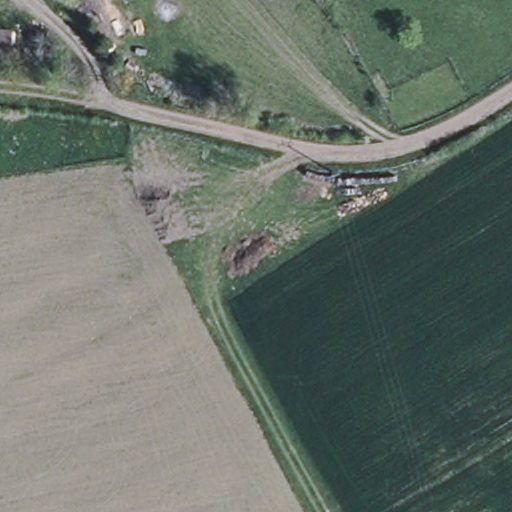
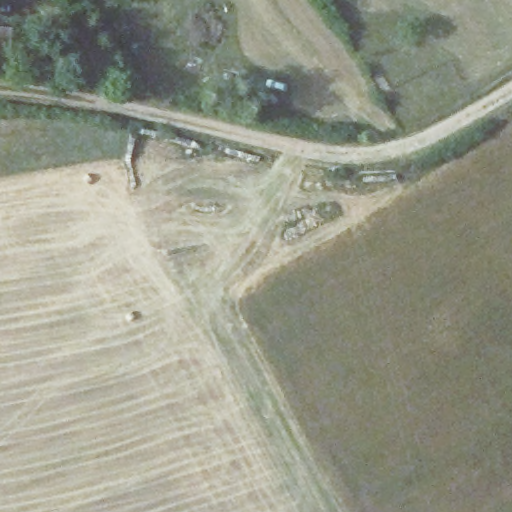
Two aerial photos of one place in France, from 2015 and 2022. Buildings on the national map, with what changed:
unchanged [(88,0),(110,0),(127,33),(108,42),(88,0)]
unchanged [(15,63),(0,63),(0,31),(14,33),(15,63)]

